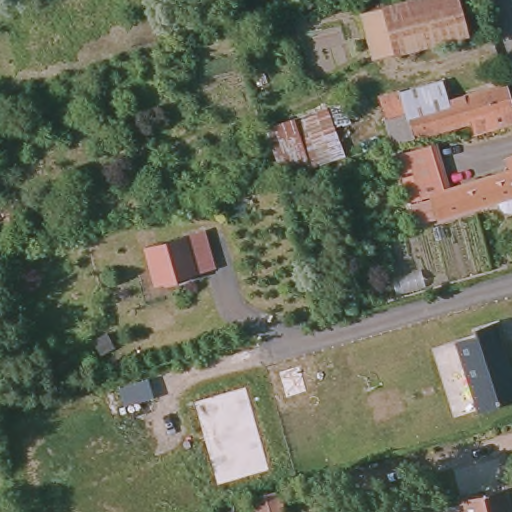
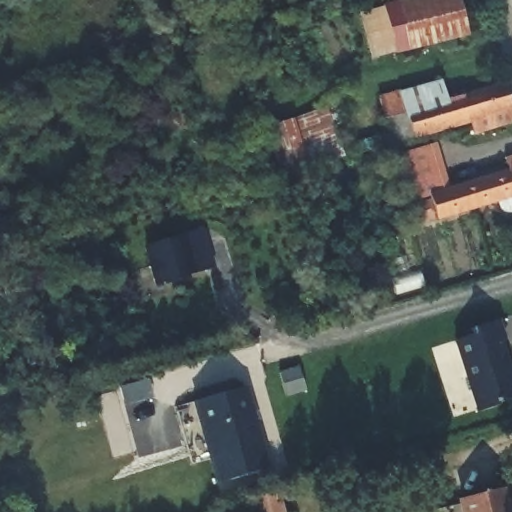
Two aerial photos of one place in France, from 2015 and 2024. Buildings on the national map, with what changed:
unchanged [(416,0),(452,0),(461,30),(372,56),(362,15),(416,0)]
unchanged [(434,77),(439,92),(445,97),(502,78),(508,98),(512,98),(512,132),(485,139),(482,126),(468,131),(467,123),(465,116),(385,139),(374,97),(434,77)]
unchanged [(345,156),(280,177),(265,127),(292,118),(326,107),(345,156)]
unchanged [(447,188),(507,172),(504,155),(512,153),(512,209),(510,209),(502,208),(497,205),(492,200),(429,220),(425,210),(404,154),(434,146),(447,188)]
unchanged [(153,287),(143,247),(204,229),(215,267),(153,287)]
unchanged [(473,334),(471,327),(500,318),(507,340),(503,342),(512,369),(512,399),(476,411),(454,341),(473,334)]
new [(245,388),(268,471),(217,485),(195,401),(245,388)]
unchanged [(455,503),(498,492),(503,512),(458,512),(455,503)]
unchanged [(273,494),(277,512),(254,512),(251,501),(273,494)]

